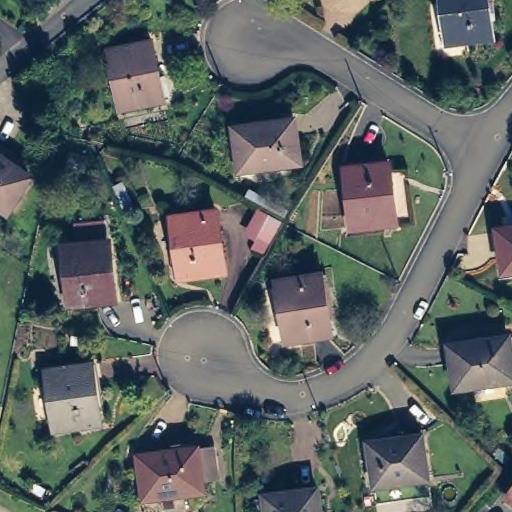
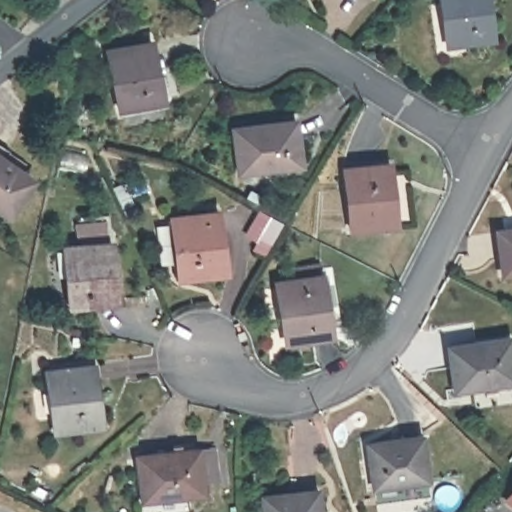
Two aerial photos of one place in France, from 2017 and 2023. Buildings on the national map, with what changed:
unchanged [(449,42),(445,0),(492,0),(497,36),(449,42)]
unchanged [(125,113),(114,52),(155,44),(167,104),(125,113)]
unchanged [(305,166),(244,174),(239,131),(300,123),(305,166)]
unchanged [(12,219),(0,211),(0,148),(15,157),(9,168),(35,186),(12,219)]
unchanged [(400,228),(357,231),(352,169),(394,165),(400,228)]
unchanged [(122,187),(134,213),(125,218),(112,190),(122,187)]
unchanged [(257,208),(280,220),(262,254),(250,247),(253,238),(244,232),(257,208)]
unchanged [(224,274),(181,280),(174,219),(215,213),(224,274)]
unchanged [(502,227),(512,226),(512,270),(508,270),(502,227)]
unchanged [(120,303),(77,307),(71,248),(114,244),(120,303)]
unchanged [(335,339),(290,344),(282,283),(325,277),(335,339)]
unchanged [(453,343),(512,335),(512,379),(460,387),(453,343)]
unchanged [(100,426),(57,431),(50,373),(92,367),(100,426)]
unchanged [(430,484),(378,489),(374,447),(425,441),(430,484)]
unchanged [(142,502),(139,459),(197,451),(216,449),(220,484),(202,486),(202,494),(142,502)]
unchanged [(260,503),(268,502),(267,499),(322,492),(325,512),(260,512),(260,503)]

